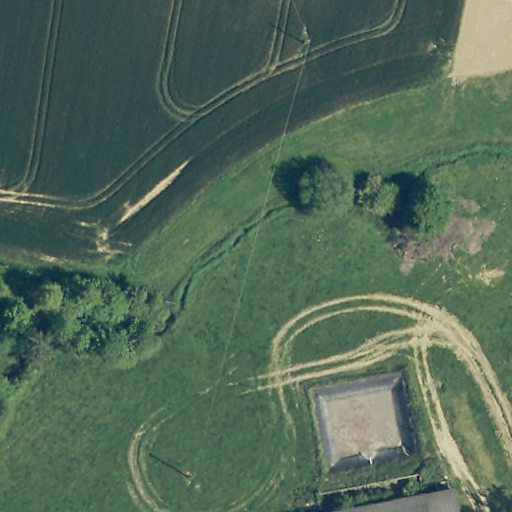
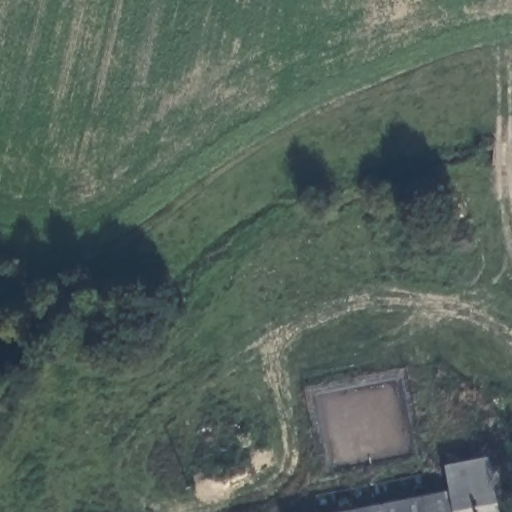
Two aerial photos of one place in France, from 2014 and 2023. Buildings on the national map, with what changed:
new [(455,487),(451,487),(446,464),(490,456),(501,512),(460,512),(455,487)]
unchanged [(455,487),(460,512),(319,512),(455,487)]

